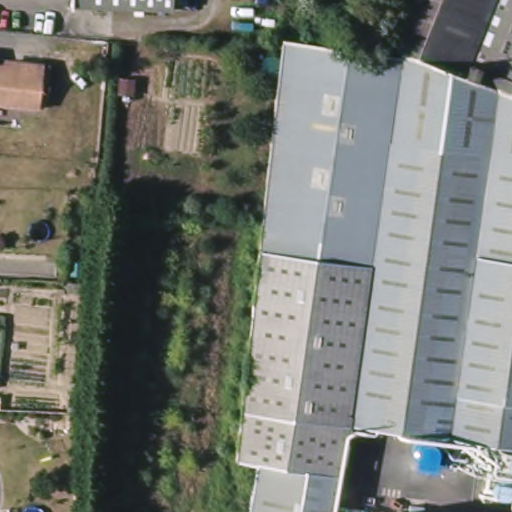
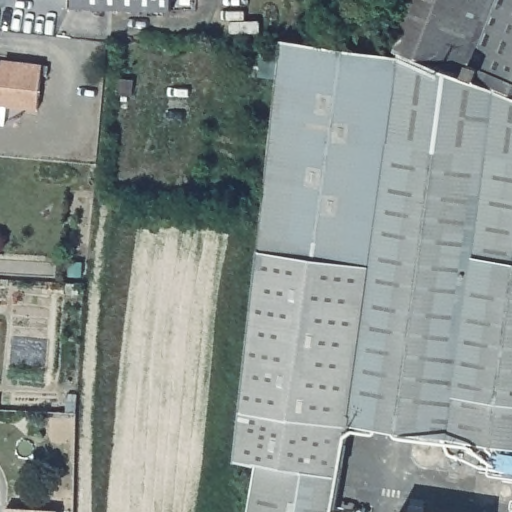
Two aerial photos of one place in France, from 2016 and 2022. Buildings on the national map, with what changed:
unchanged [(71,7),(71,0),(172,0),(172,10),(71,7)]
unchanged [(256,467),(257,465),(237,462),(263,217),(281,46),(282,40),(286,41),(345,50),(399,58),(400,52),(464,77),(494,0),(512,0),(512,446),(349,425),(335,512),(249,512),(256,467)]
unchanged [(400,52),(396,51),(409,0),(494,0),(464,77),(400,52)]
unchanged [(14,62),(43,65),(38,110),(0,105),(0,65),(13,67),(14,62)]
unchanged [(423,441),(425,441),(428,441),(431,441),(434,443),(436,446),(438,448),(438,452),(437,455),(436,458),(433,461),(431,462),(428,462),(424,462),(421,461),(419,459),(417,456),(416,453),(416,451),(417,447),(418,445),(419,443),(420,443),(423,441)]
unchanged [(512,452),(512,470),(500,468),(502,451),(512,452)]
unchanged [(500,483),(503,482),(506,482),(508,483),(510,484),(512,486),(512,495),(511,496),(510,497),(508,498),(507,499),(504,499),(502,498),(500,497),(498,496),(497,494),(496,492),(496,490),(497,487),(498,486),(500,483)]

